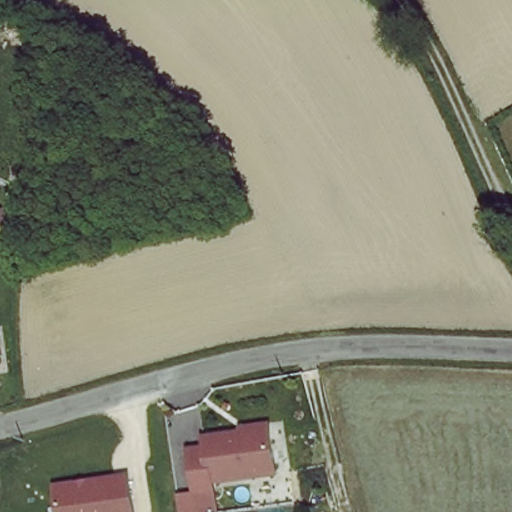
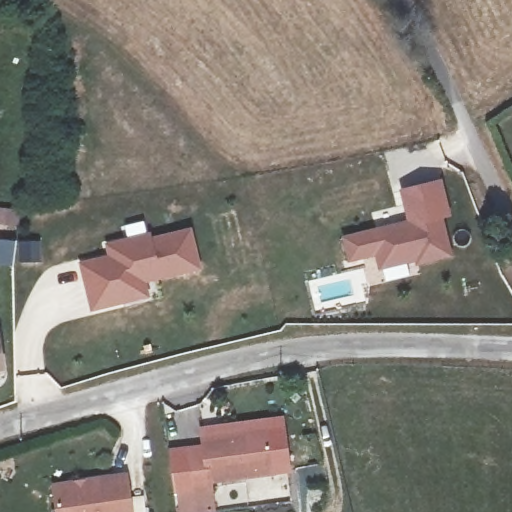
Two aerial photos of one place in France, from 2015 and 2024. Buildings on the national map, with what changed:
new [(406,225),(400,192),(440,185),(452,257),(419,267),(418,262),(380,270),(378,262),(351,267),(345,236),(406,225)]
new [(105,258),(102,249),(148,237),(150,244),(190,235),(203,284),(163,294),(161,283),(143,287),(146,301),(91,315),(78,265),(105,258)]
unchanged [(0,362),(0,344),(4,361),(0,362)]
unchanged [(178,495),(193,492),(187,448),(203,446),(203,436),(266,427),(273,471),(209,480),(210,490),(213,512),(180,512),(178,495)]
unchanged [(131,469),(136,512),(62,512),(58,479),(131,469)]

